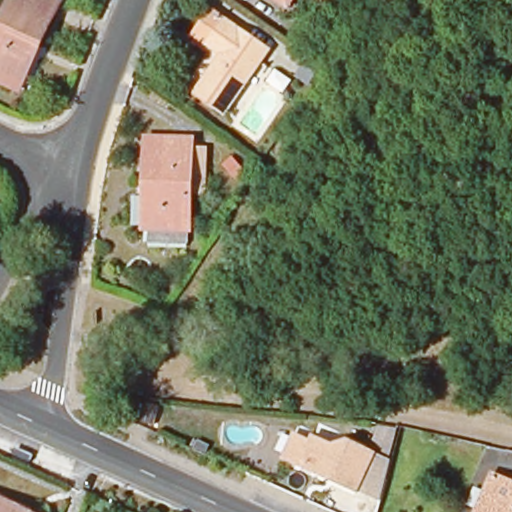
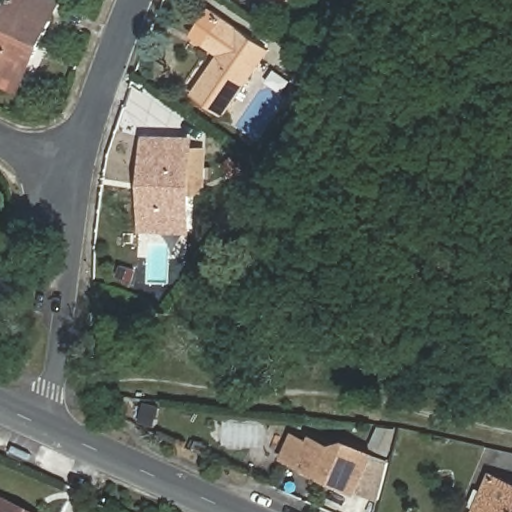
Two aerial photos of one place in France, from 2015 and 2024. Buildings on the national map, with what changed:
unchanged [(42,0),(58,7),(21,87),(0,77),(0,33),(15,0),(42,0)]
unchanged [(273,0),(295,0),(289,10),(273,0)]
unchanged [(194,35),(211,10),(268,51),(224,117),(194,97),(222,55),(194,35)]
unchanged [(147,140),(191,141),(188,230),(187,230),(186,245),(149,244),(150,229),(144,229),(147,140)]
unchanged [(356,495),(280,457),(290,437),(306,445),(309,439),(327,448),(351,442),(376,454),(356,495)]
unchanged [(491,473),(512,482),(512,512),(475,512),(491,473)]
unchanged [(25,512),(0,512),(0,499),(25,512)]

